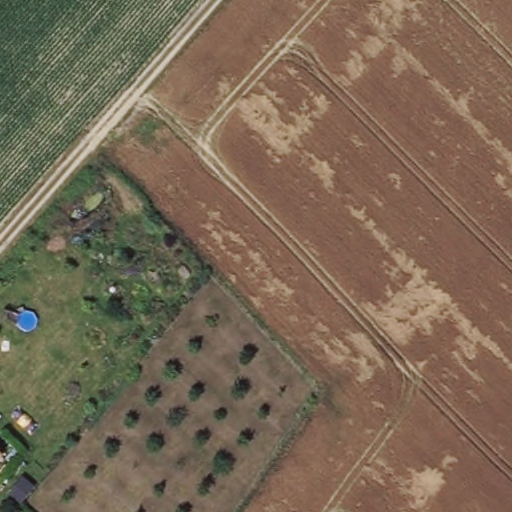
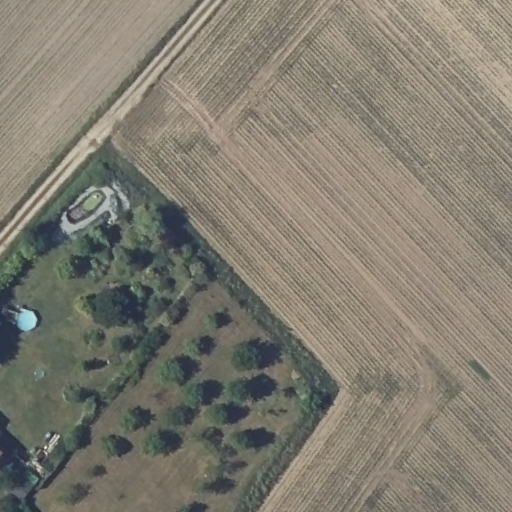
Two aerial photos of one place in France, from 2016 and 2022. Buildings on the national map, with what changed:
unchanged [(2,452),(0,455),(0,451),(2,452)]

